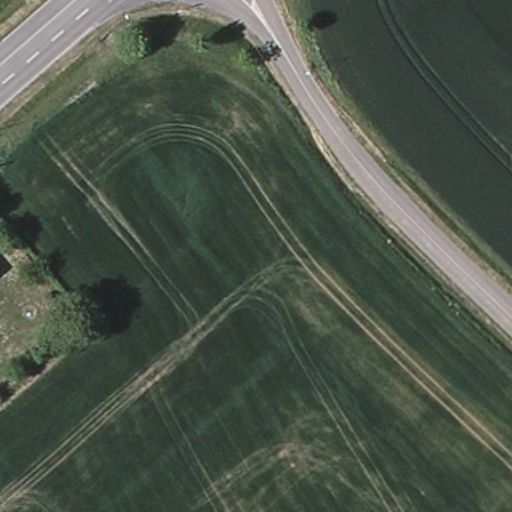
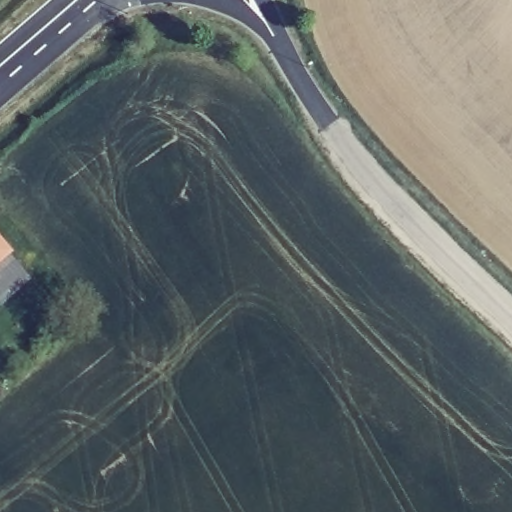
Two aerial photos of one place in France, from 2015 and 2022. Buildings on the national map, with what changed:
new [(11,257),(29,277),(0,303),(0,239),(14,255),(11,257)]

